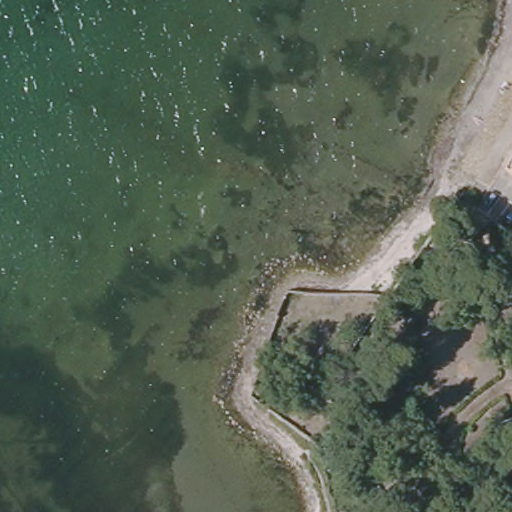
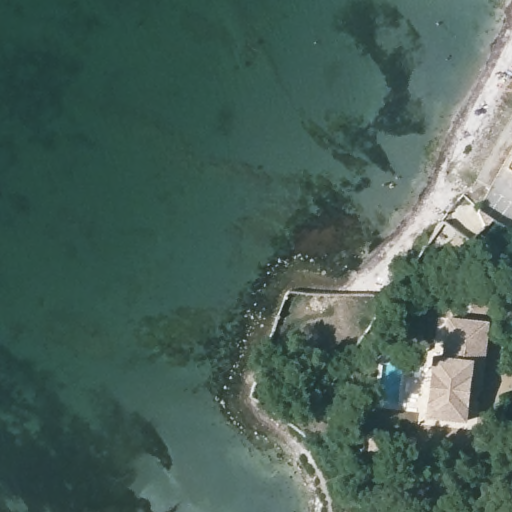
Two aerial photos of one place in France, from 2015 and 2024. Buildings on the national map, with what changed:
new [(468,389),(465,421),(426,417),(433,357),(443,359),(447,319),(487,323),(481,375),(479,390),(468,389)]
new [(399,433),(398,451),(373,450),(374,432),(399,433)]

